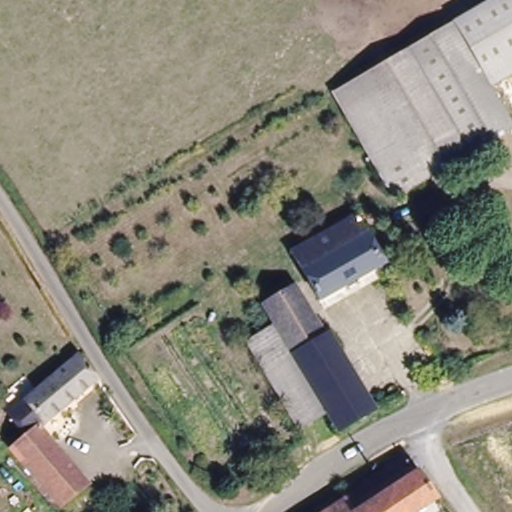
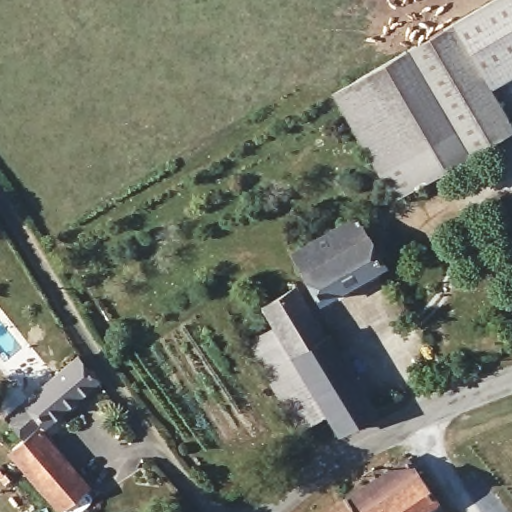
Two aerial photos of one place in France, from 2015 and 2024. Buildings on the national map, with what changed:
unchanged [(492,0),(512,0),(512,56),(478,76),(509,127),(394,196),(333,96),(492,0)]
unchanged [(370,244),(377,239),(382,248),(376,253),(380,261),(315,297),(290,250),(352,213),(370,244)]
unchanged [(326,413),(301,429),(247,347),(277,328),(265,308),(296,288),(326,337),(330,335),(374,412),(339,432),(326,413)]
unchanged [(32,426),(16,401),(73,363),(89,384),(32,426)]
unchanged [(62,508),(4,455),(28,431),(81,484),(72,498),(62,508)]
unchanged [(435,497),(413,512),(324,512),(408,456),(435,497)]

